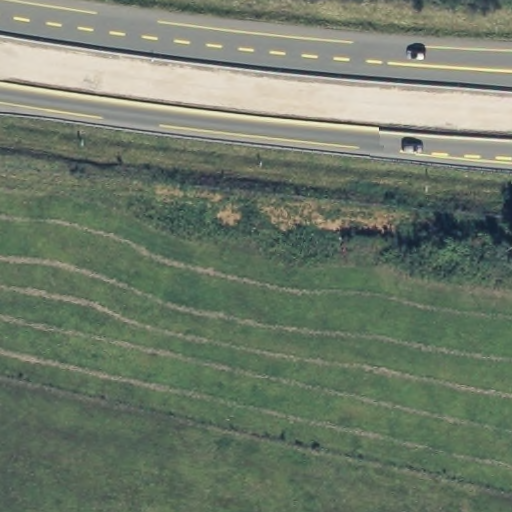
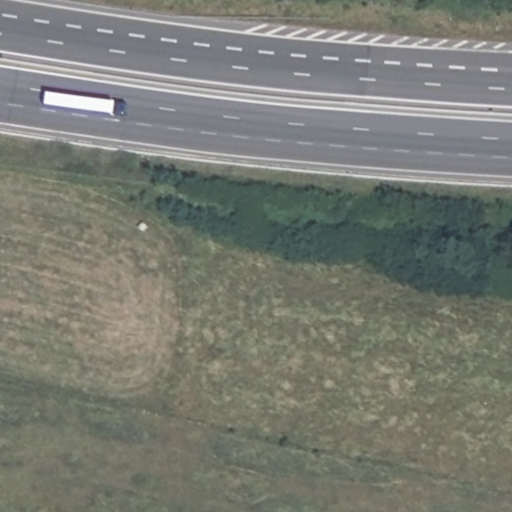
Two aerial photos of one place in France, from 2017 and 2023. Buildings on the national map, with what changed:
[]

